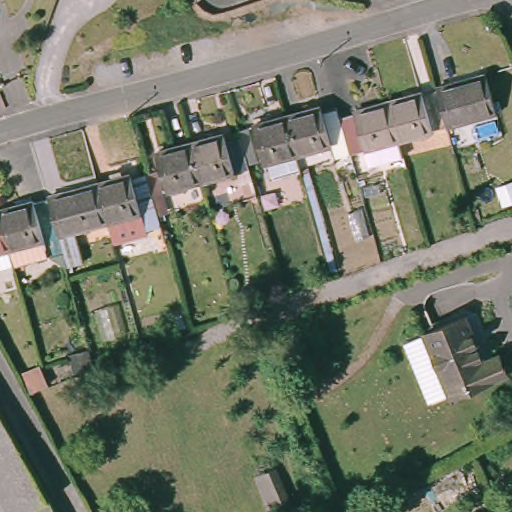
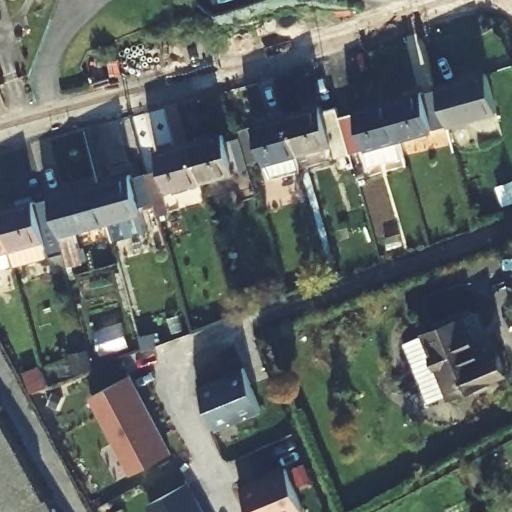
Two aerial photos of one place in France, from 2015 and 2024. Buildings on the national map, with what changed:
unchanged [(481,69),(491,106),(442,121),(432,88),(431,86),(431,84),(481,69)]
unchanged [(393,135),(383,96),(416,88),(417,90),(431,86),(432,88),(442,121),(393,135)]
unchanged [(349,108),(348,106),(383,96),(393,135),(398,151),(363,161),(358,144),(345,148),(335,111),(349,108)]
unchanged [(328,153),(325,141),(295,150),(283,111),(332,99),(335,111),(345,148),(328,153)]
unchanged [(295,150),(297,161),(267,170),(264,158),(257,160),(247,121),(283,111),(295,150)]
unchanged [(225,134),(235,172),(202,181),(192,143),(225,134)]
unchanged [(202,181),(166,191),(155,153),(192,143),(202,181)]
unchanged [(108,223),(97,184),(131,175),(147,235),(114,244),(108,223)]
unchanged [(108,223),(59,237),(48,198),(97,184),(108,223)]
unchanged [(59,237),(63,255),(16,267),(15,266),(0,213),(0,211),(48,198),(59,237)]
unchanged [(167,243),(157,246),(148,212),(157,209),(167,243)]
unchanged [(0,270),(0,213),(15,266),(0,270)]
unchanged [(425,397),(402,345),(465,318),(483,361),(499,355),(507,374),(450,398),(450,396),(429,404),(425,397)]
new [(243,366),(261,409),(216,431),(199,388),(243,366)]
new [(172,451),(133,475),(88,398),(132,375),(172,451)]
unchanged [(0,413),(57,512),(0,512),(0,413)]
new [(304,512),(303,512),(250,512),(241,490),(270,480),(268,475),(286,468),(304,512)]
demolished [(294,512),(269,512),(256,476),(278,468),(294,512)]
new [(207,512),(151,512),(147,505),(191,483),(207,512)]

